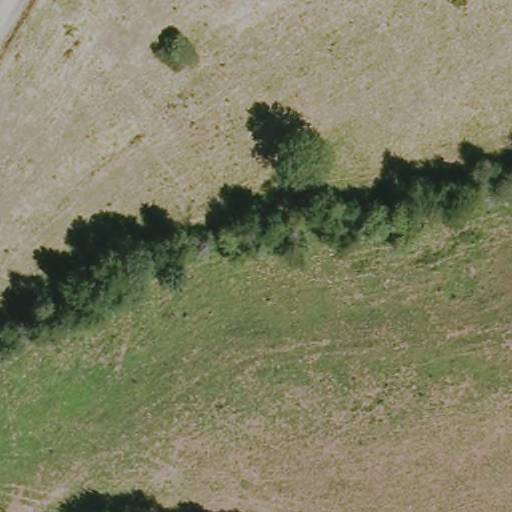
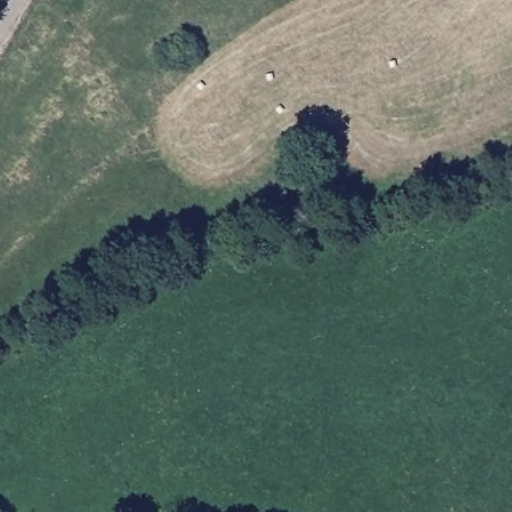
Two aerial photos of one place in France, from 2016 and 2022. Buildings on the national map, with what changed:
[]

